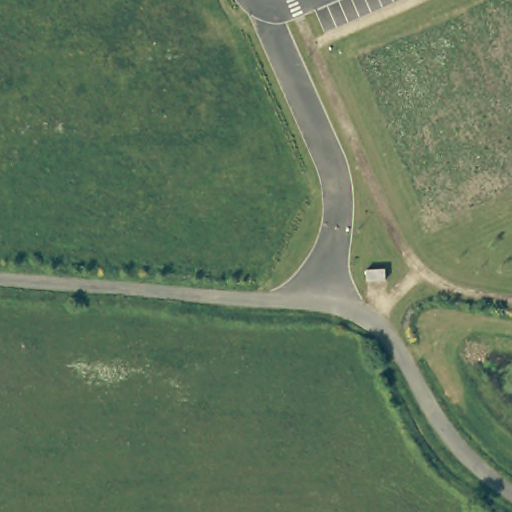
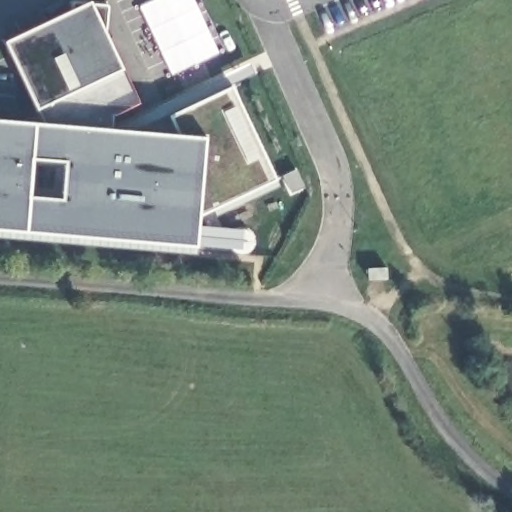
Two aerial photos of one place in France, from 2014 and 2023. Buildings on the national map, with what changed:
new [(207,245),(195,245),(0,228),(0,119),(45,122),(36,109),(4,40),(72,9),(72,0),(80,0),(91,2),(107,6),(105,31),(123,69),(139,104),(113,117),(112,127),(177,132),(167,116),(232,84),(276,180),(211,211),(207,245)]

